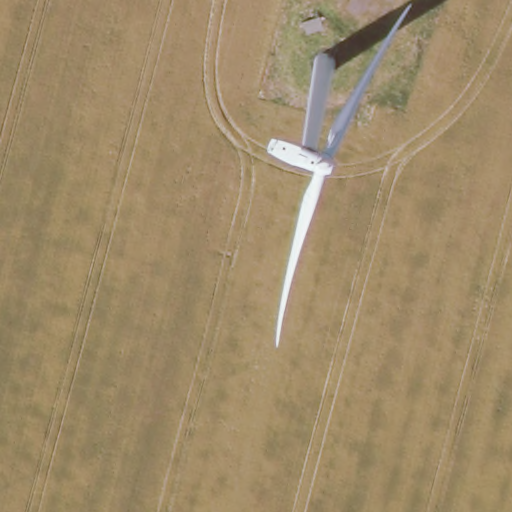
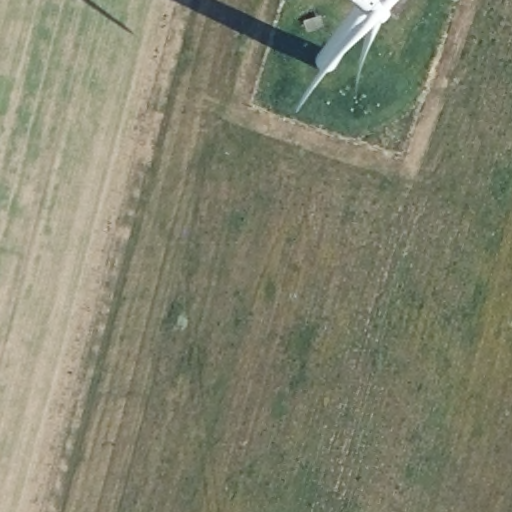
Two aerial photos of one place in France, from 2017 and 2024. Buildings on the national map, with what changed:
unchanged [(322,20),(325,32),(308,38),(305,25),(322,20)]

